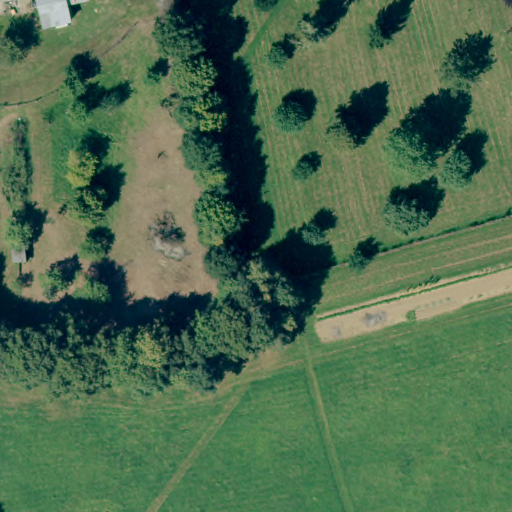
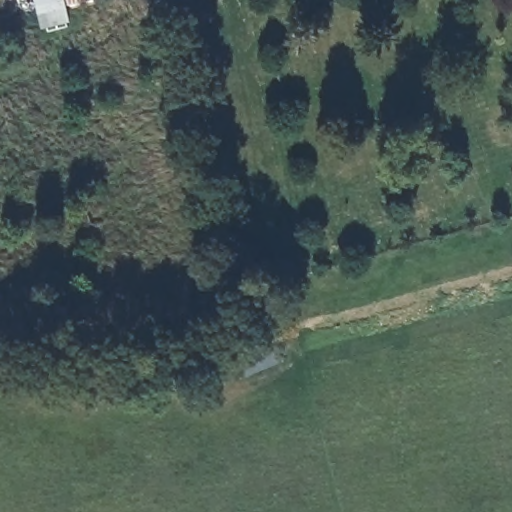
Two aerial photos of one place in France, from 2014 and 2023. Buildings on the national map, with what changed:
unchanged [(38,0),(52,0),(39,3),(38,0)]
unchanged [(67,0),(75,0),(67,2),(67,0)]

